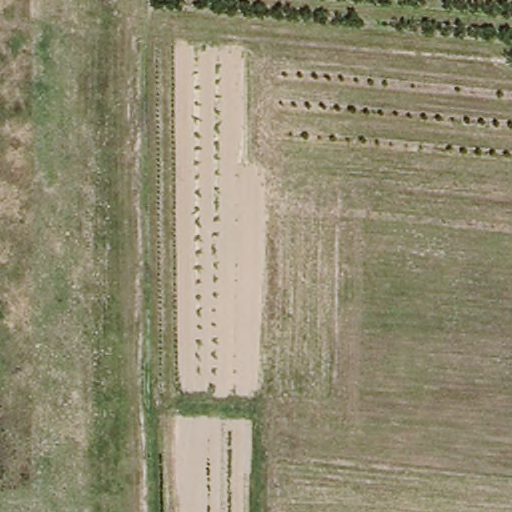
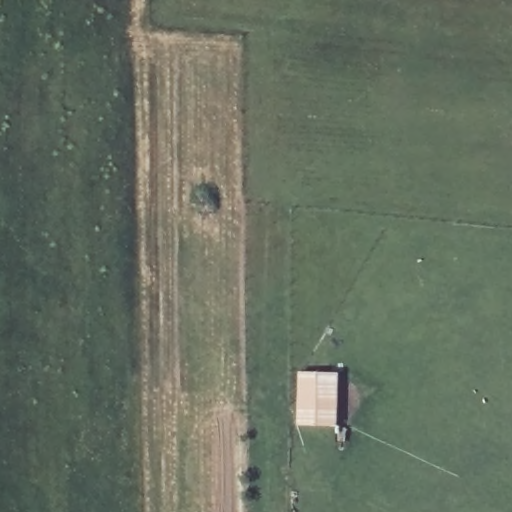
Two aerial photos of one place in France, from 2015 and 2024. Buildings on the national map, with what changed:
new [(338,374),(337,426),(297,426),(299,373),(338,374)]

